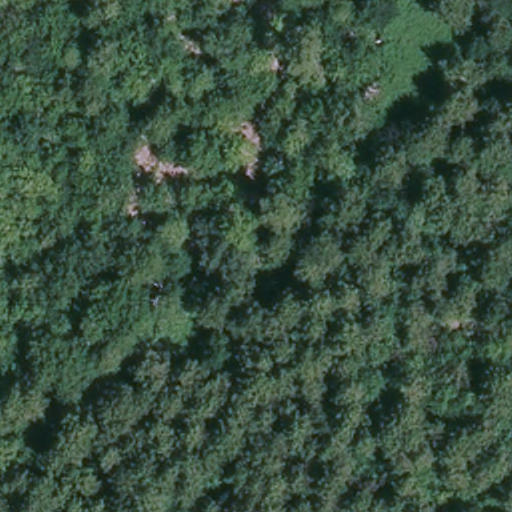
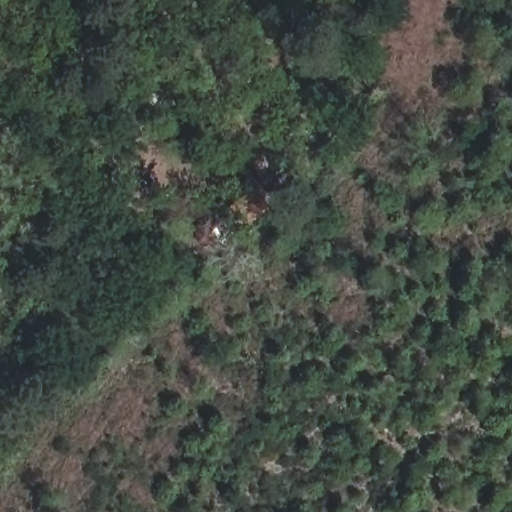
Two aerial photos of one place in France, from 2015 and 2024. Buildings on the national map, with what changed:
unchanged [(274,209),(242,233),(239,228),(215,249),(204,234),(262,191),(274,209)]

